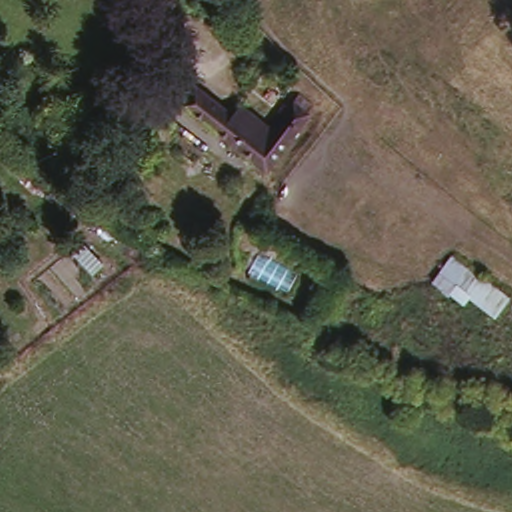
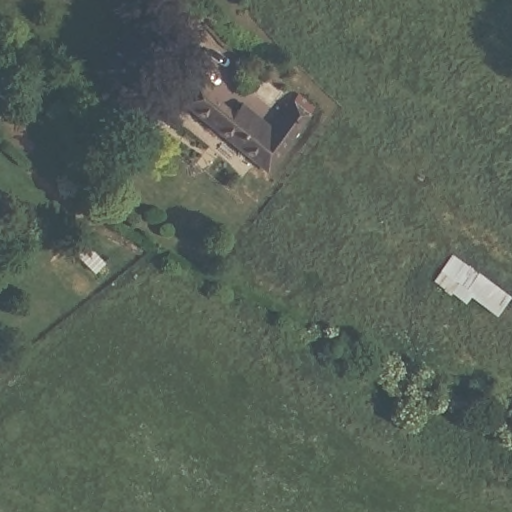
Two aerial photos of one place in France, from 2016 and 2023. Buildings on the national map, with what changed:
unchanged [(245,159),(172,101),(189,83),(227,113),(237,105),(265,127),(287,101),(305,115),(275,152),(261,171),(245,159)]
unchanged [(497,317),(452,283),(445,289),(428,277),(452,248),(512,296),(512,300),(497,317)]
unchanged [(459,391),(467,367),(504,380),(495,402),(459,391)]

